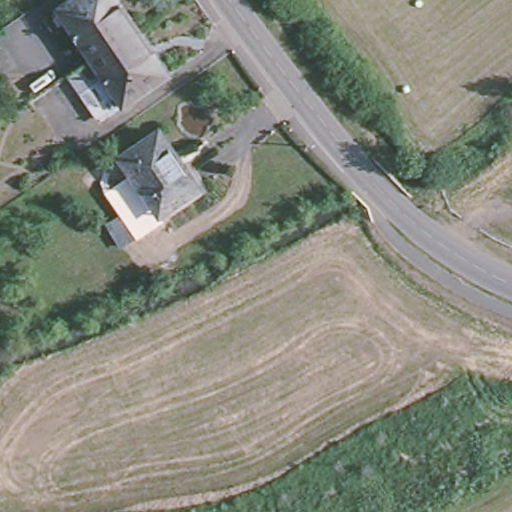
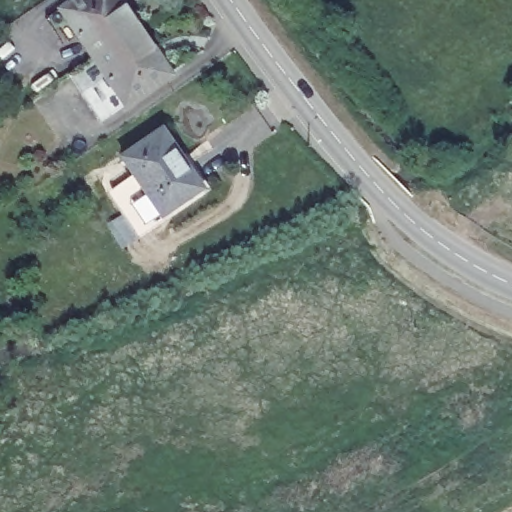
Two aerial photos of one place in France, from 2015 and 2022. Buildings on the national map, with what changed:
unchanged [(62,34),(53,19),(68,9),(81,0),(128,0),(130,3),(145,25),(100,56),(86,36),(76,44),(67,30),(62,34)]
unchanged [(109,100),(113,98),(104,84),(115,78),(100,56),(145,25),(161,48),(178,73),(175,75),(132,104),(118,114),(109,100)]
unchanged [(125,149),(165,121),(205,179),(166,205),(163,207),(136,167),(125,149)]
unchanged [(170,211),(142,230),(111,184),(136,167),(163,207),(166,205),(170,211)]

